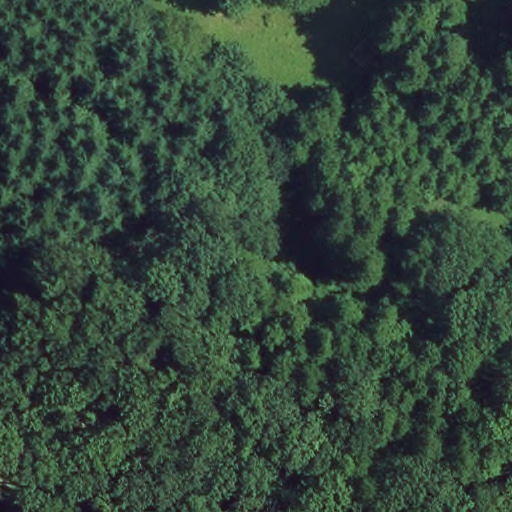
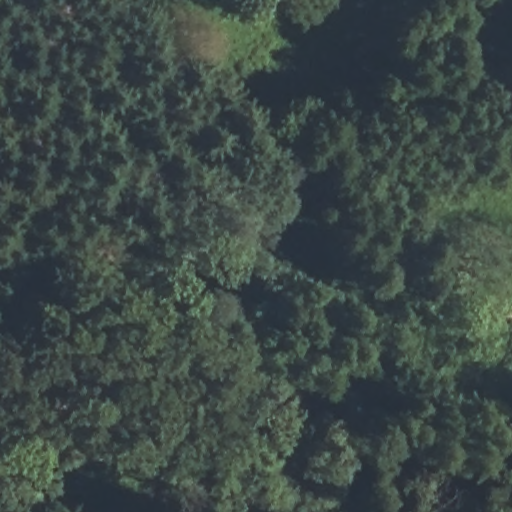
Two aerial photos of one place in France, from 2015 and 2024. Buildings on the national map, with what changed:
unchanged [(382,81),(346,58),(361,38),(405,65),(382,81)]

